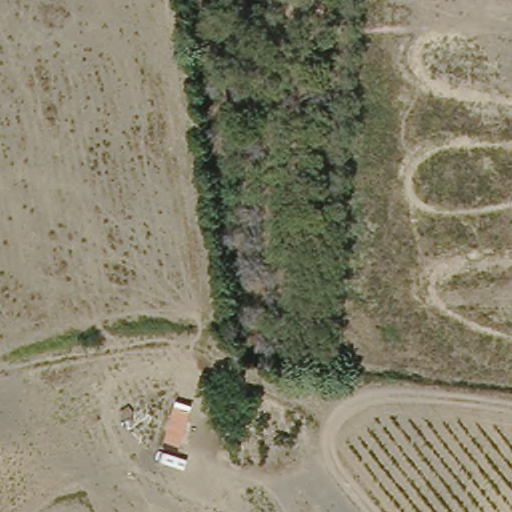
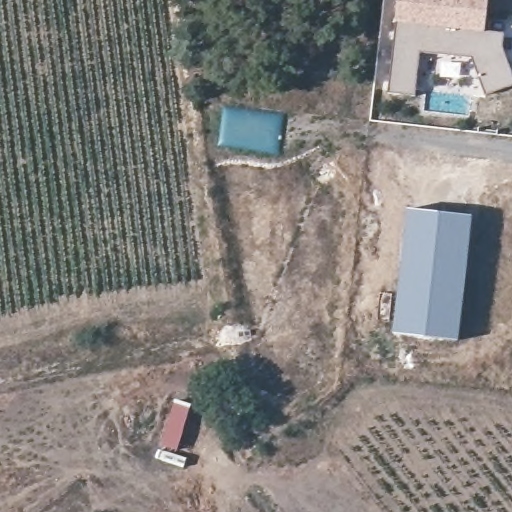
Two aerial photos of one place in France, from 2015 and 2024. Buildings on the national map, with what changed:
new [(473,58),(421,53),(416,96),(389,93),(396,23),(399,0),(490,0),(487,33),(504,34),(503,49),(512,73),(512,86),(486,94),(473,58)]
new [(408,207),(474,215),(459,341),(393,333),(408,207)]

